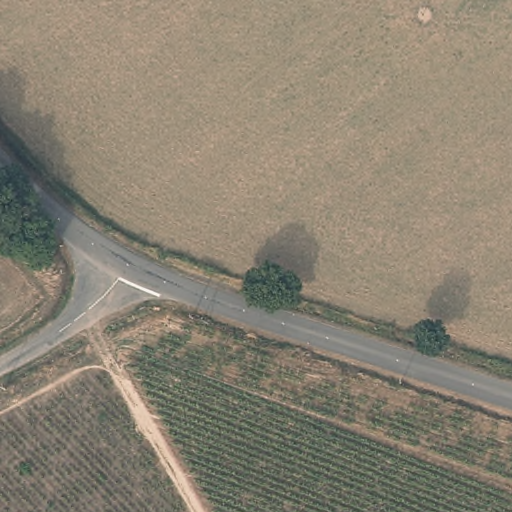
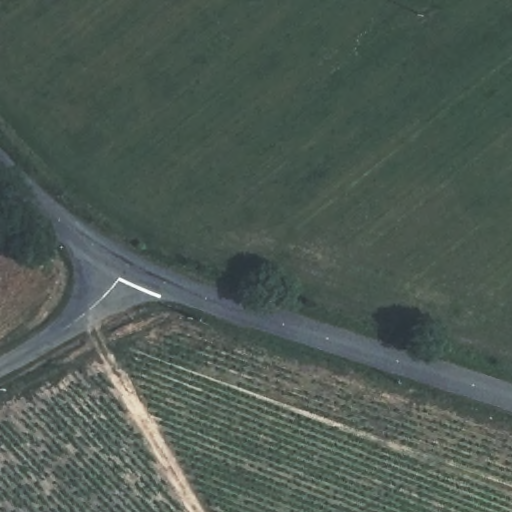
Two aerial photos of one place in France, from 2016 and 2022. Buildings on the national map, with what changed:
[]

